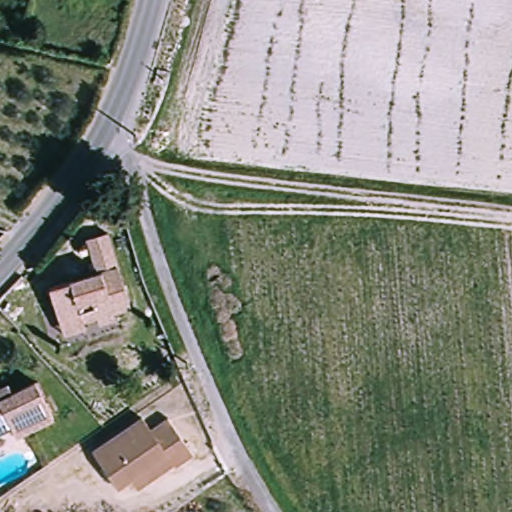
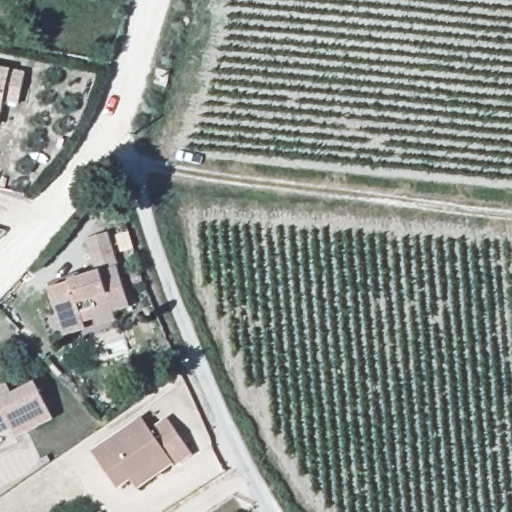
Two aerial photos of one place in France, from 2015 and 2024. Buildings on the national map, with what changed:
new [(19,102),(3,101),(1,112),(0,112),(0,67),(10,69),(25,72),(19,102)]
unchanged [(67,330),(62,331),(60,323),(48,285),(96,269),(91,252),(111,246),(122,282),(128,301),(111,306),(113,314),(98,318),(96,311),(83,315),(85,325),(67,330)]
unchanged [(0,428),(0,378),(2,377),(8,386),(28,374),(48,412),(10,432),(6,425),(0,428)]
unchanged [(125,476),(112,484),(89,448),(138,414),(145,425),(162,414),(187,450),(167,466),(165,462),(131,486),(125,476)]

